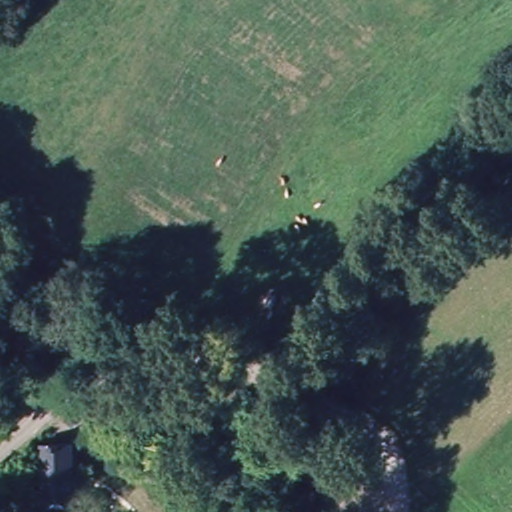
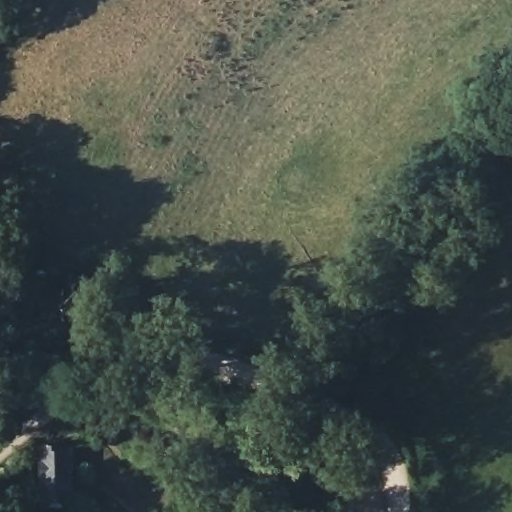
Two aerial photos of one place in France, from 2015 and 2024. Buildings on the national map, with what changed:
unchanged [(58,348),(73,334),(75,338),(84,333),(89,338),(93,334),(104,348),(79,375),(58,348)]
unchanged [(72,444),(73,503),(39,503),(40,444),(72,444)]

